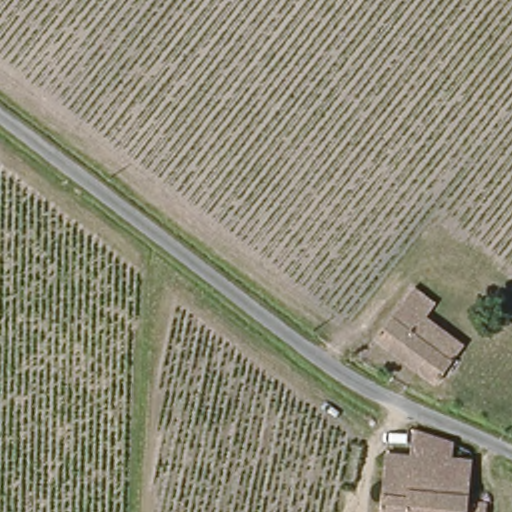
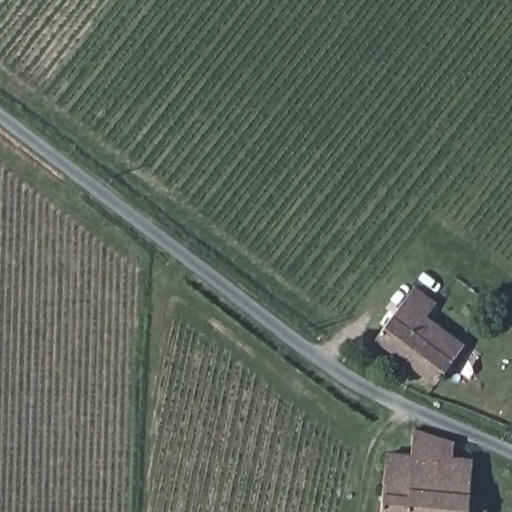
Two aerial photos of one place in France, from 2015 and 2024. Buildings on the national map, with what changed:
unchanged [(436,302),(425,317),(462,345),(455,354),(459,357),(454,364),(450,361),(435,380),(374,335),(413,284),(436,302)]
unchanged [(468,485),(485,487),(483,512),(379,512),(383,465),(407,465),(409,427),(453,441),(454,459),(469,460),(468,485)]

